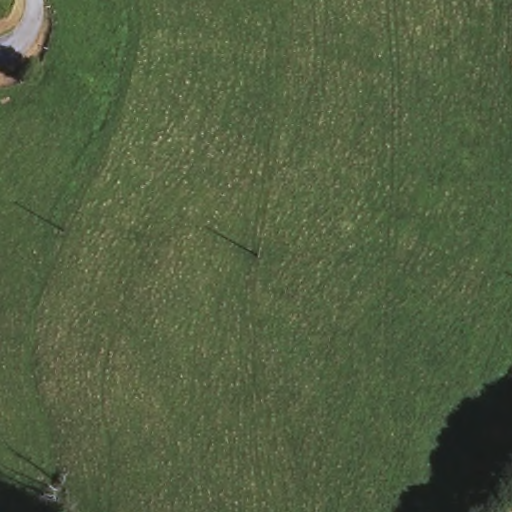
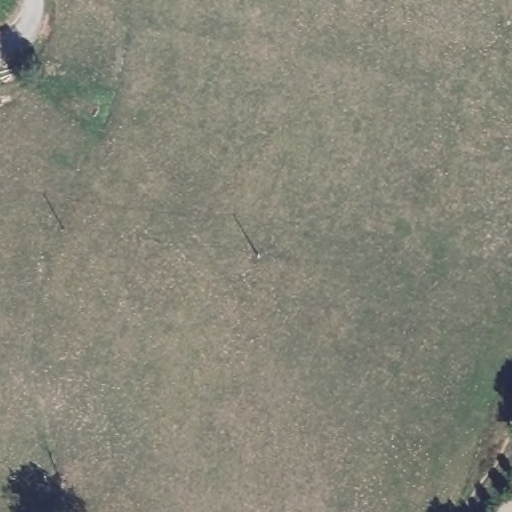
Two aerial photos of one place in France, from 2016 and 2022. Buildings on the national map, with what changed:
[]

